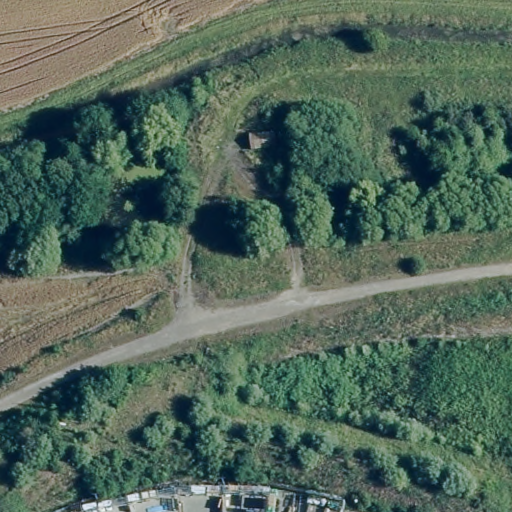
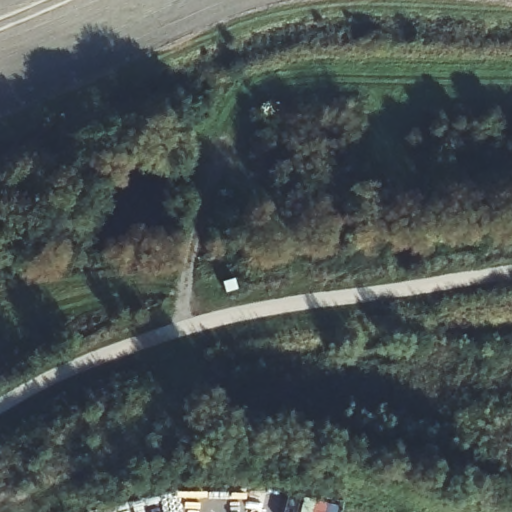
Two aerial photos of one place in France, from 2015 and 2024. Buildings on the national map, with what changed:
unchanged [(273,135),(274,150),(253,153),(251,138),(273,135)]

